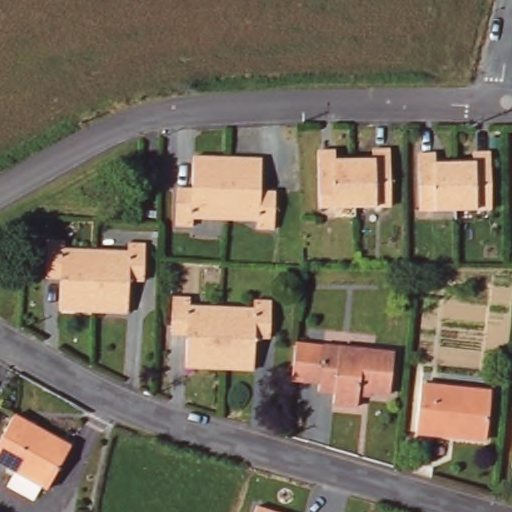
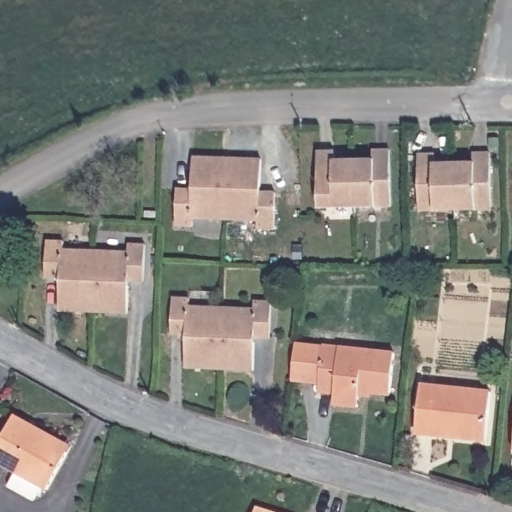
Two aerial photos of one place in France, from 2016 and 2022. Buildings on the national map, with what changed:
unchanged [(371,161),(371,149),(389,148),(389,204),(355,204),(316,204),(315,149),(330,149),(330,162),(354,162),(371,161)]
unchanged [(417,208),(416,155),(432,154),(432,163),(449,163),(472,163),(472,154),(488,154),(488,207),(451,208),(417,208)]
unchanged [(194,214),(194,224),(175,223),(177,185),(195,187),(196,158),(228,159),(262,160),(261,189),(274,189),(273,227),(255,225),(255,216),(226,215),(194,214)]
unchanged [(172,210),(172,218),(163,218),(163,210),(172,210)]
unchanged [(63,310),(64,277),(45,276),(47,237),(64,237),(64,245),(94,247),(129,248),(129,240),(145,242),(144,282),(129,280),(128,314),(93,312),(63,310)]
unchanged [(250,308),(251,299),(269,300),(267,338),(252,338),(249,370),(217,369),(186,367),(188,334),(167,333),(169,294),(187,295),(187,304),(218,307),(250,308)]
unchanged [(358,397),(358,409),(335,408),(336,392),(294,389),(297,344),(344,348),(370,349),(394,351),(391,392),(371,392),(371,397),(358,397)]
unchanged [(491,389),(487,441),(419,436),(423,384),(491,389)]
unchanged [(26,429),(64,450),(45,483),(0,457),(0,440),(16,413),(30,422),(26,429)]
unchanged [(280,512),(255,512),(257,504),(280,512)]

